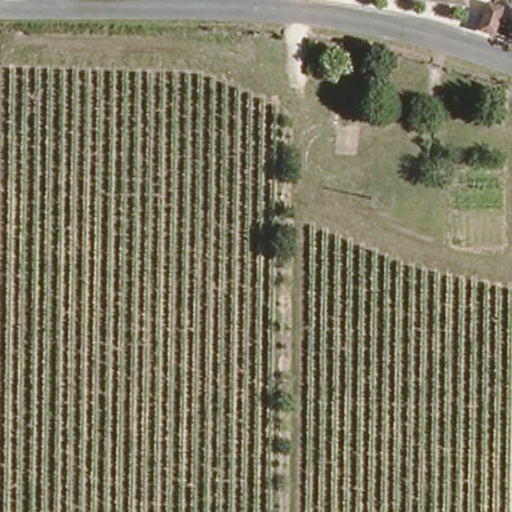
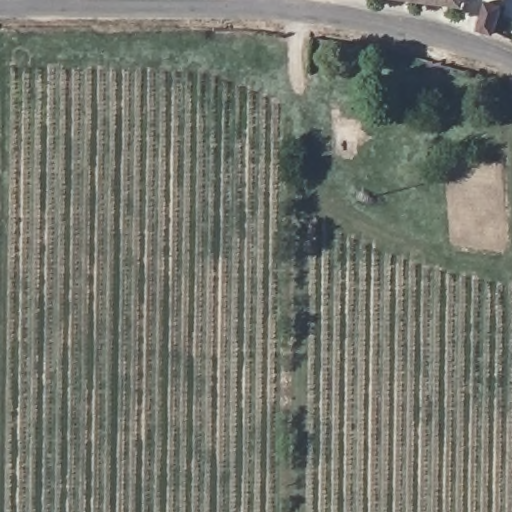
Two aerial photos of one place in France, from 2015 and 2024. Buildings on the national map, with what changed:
unchanged [(484,0),(495,3),(493,10),(504,14),(498,34),(473,24),(480,0),(484,0)]

